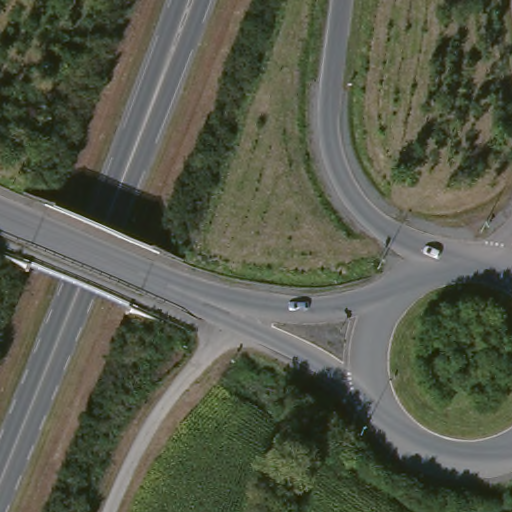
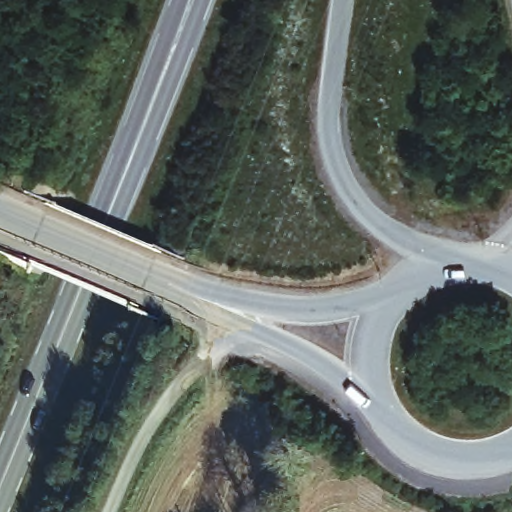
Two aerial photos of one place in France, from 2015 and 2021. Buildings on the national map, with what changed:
[]

